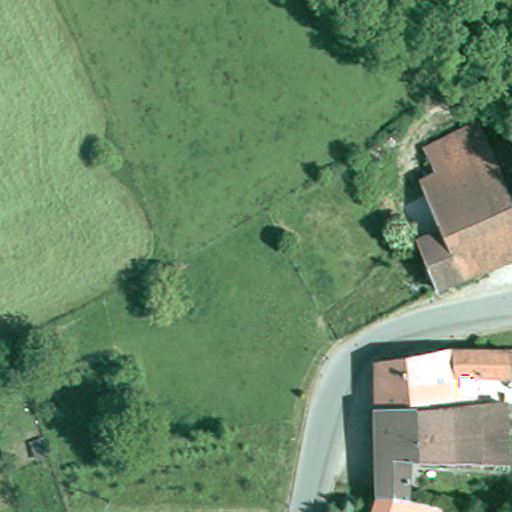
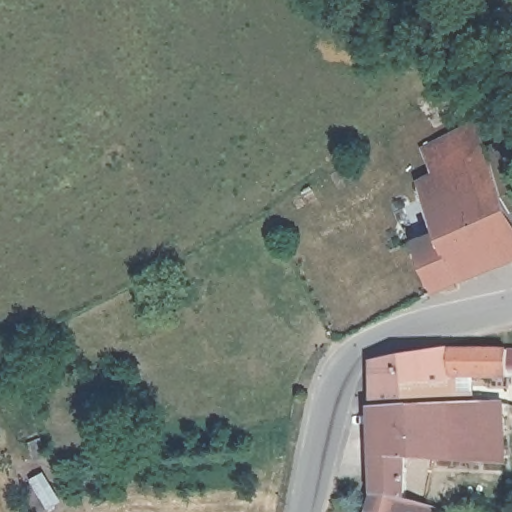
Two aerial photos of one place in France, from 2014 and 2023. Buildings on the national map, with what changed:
unchanged [(427,268),(417,245),(427,241),(439,236),(420,189),(435,182),(427,157),(476,135),(488,160),(512,149),(512,150),(512,265),(500,270),(437,297),(427,268)]
unchanged [(408,459),(406,500),(382,492),(379,466),(377,437),(377,409),(375,367),(462,349),(512,354),(512,361),(509,381),(490,378),(488,402),(505,406),(505,421),(505,462),(408,459)]
unchanged [(382,492),(406,500),(417,504),(414,512),(373,512),(382,492)]

